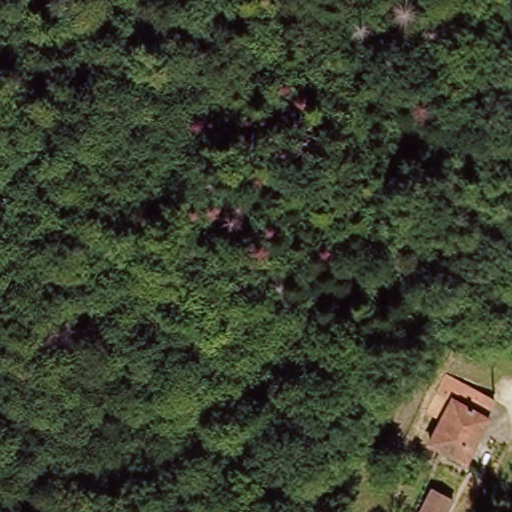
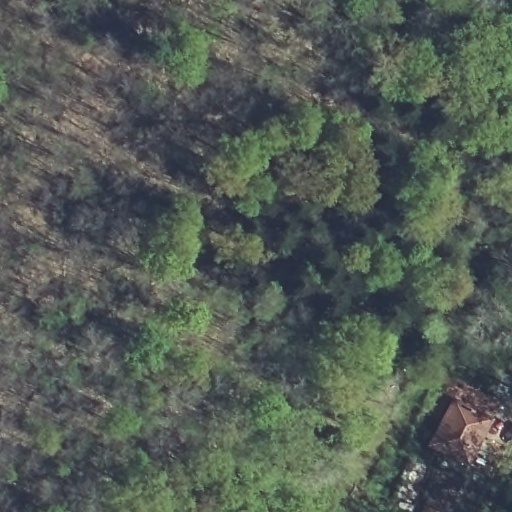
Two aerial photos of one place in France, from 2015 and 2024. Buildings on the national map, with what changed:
unchanged [(488,413),(479,433),(482,435),(462,478),(423,462),(444,416),(430,410),(438,391),(488,413)]
unchanged [(455,498),(448,512),(424,512),(435,489),(455,498)]

